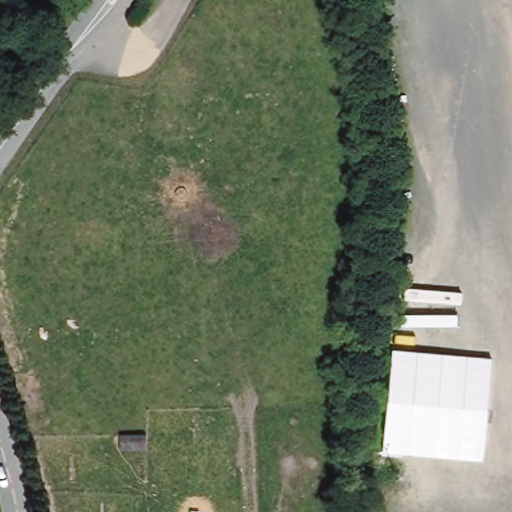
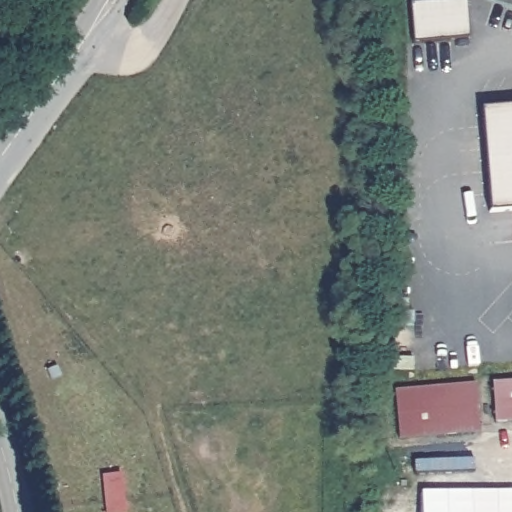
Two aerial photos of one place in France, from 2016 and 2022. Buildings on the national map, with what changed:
new [(412,43),(409,6),(463,2),(467,39),(412,43)]
new [(512,204),(486,205),(482,101),(512,100),(512,204)]
new [(492,383),(512,381),(512,420),(495,422),(492,383)]
new [(398,439),(394,392),(474,384),(478,430),(398,439)]
unchanged [(393,489),(493,486),(494,512),(394,512),(393,489)]

